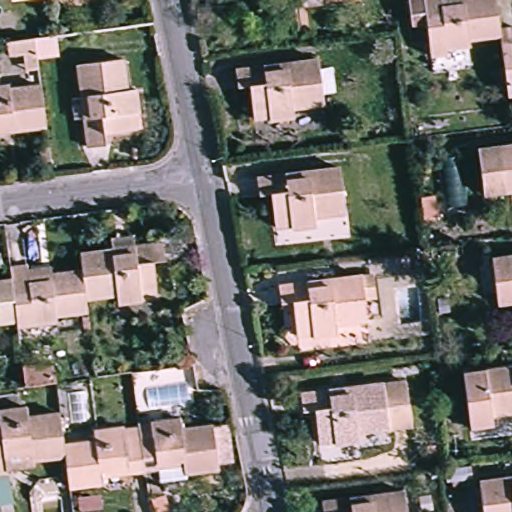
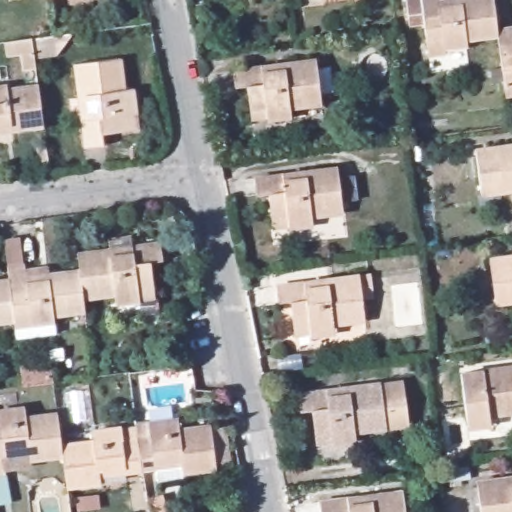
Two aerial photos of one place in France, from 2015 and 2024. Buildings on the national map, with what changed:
unchanged [(465,45),(426,50),(420,0),(436,0),(436,2),(454,0),(491,0),(496,30),(496,36),(465,39),(465,45)]
unchanged [(496,36),(496,30),(512,29),(512,95),(503,96),(496,36)]
unchanged [(34,35),(38,71),(24,72),(21,55),(7,56),(6,39),(34,35)]
unchanged [(117,59),(121,89),(130,87),(134,111),(129,112),(131,129),(100,133),(101,144),(83,146),(71,65),(117,59)]
unchanged [(315,70),(322,114),(291,119),(292,127),(267,130),(266,120),(252,121),(250,97),(239,99),(236,81),(315,70)]
unchanged [(0,130),(0,84),(3,84),(4,89),(38,84),(43,124),(0,130)]
unchanged [(479,195),(474,149),(512,144),(512,193),(479,195)]
unchanged [(333,169),(340,211),(309,216),(310,224),(284,227),(283,217),(272,219),(267,195),(258,196),(255,180),(333,169)]
unchanged [(156,242),(159,260),(146,261),(151,295),(132,297),(132,301),(111,304),(110,293),(79,300),(75,270),(73,255),(156,242)]
unchanged [(512,253),(512,295),(494,297),(488,256),(512,253)]
unchanged [(52,321),(13,328),(12,320),(6,279),(5,270),(5,268),(21,266),(23,277),(75,270),(79,300),(81,308),(51,314),(52,321)]
unchanged [(358,277),(363,318),(332,322),(333,331),(310,334),(309,325),(294,327),(291,301),(279,303),(277,288),(358,277)]
unchanged [(0,321),(0,280),(6,279),(12,320),(0,321)]
unchanged [(55,383),(24,385),(23,365),(53,363),(55,383)]
unchanged [(467,427),(461,375),(512,368),(512,420),(490,423),(467,427)]
unchanged [(389,385),(395,426),(363,431),(364,438),(341,442),(339,432),(326,435),(322,408),(312,410),(310,395),(389,385)]
unchanged [(61,452),(62,461),(30,465),(28,454),(0,458),(0,415),(23,412),(25,425),(56,420),(57,425),(61,452)]
unchanged [(139,440),(139,438),(153,436),(151,426),(181,421),(183,433),(211,428),(218,469),(184,475),(182,461),(158,465),(159,470),(144,472),(139,440)]
unchanged [(144,472),(129,476),(128,471),(103,476),(105,486),(67,492),(66,483),(63,466),(62,461),(61,452),(96,446),(94,436),(121,431),(123,443),(139,440),(144,472)]
unchanged [(0,463),(0,461),(1,463),(0,463)]
unchanged [(512,478),(512,512),(477,512),(474,482),(512,478)]
unchanged [(397,493),(399,512),(318,512),(317,505),(397,493)]

